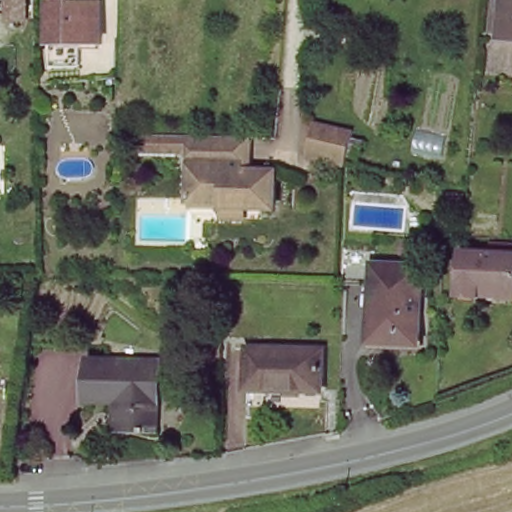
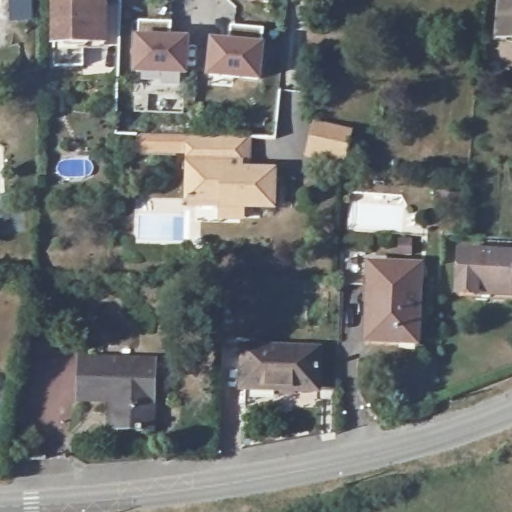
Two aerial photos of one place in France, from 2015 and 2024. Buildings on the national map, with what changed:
unchanged [(83,39),(84,62),(55,62),(54,38),(53,0),(103,0),(104,39),(83,39)]
unchanged [(503,0),(512,0),(512,38),(500,36),(503,0)]
new [(136,71),(138,20),(171,22),(169,39),(186,39),(185,71),(136,71)]
new [(213,46),(214,38),(231,40),(232,26),(264,29),(258,78),(210,75),(213,46)]
unchanged [(306,160),(314,124),(356,134),(347,169),(306,160)]
unchanged [(273,214),(243,213),(242,224),(220,223),(221,208),(186,207),(188,159),(138,157),(138,139),(189,140),(243,141),(250,142),(249,173),(274,174),(273,214)]
unchanged [(462,204),(455,203),(440,203),(440,192),(457,193),(462,193),(462,204)]
unchanged [(472,300),(471,296),(454,295),(455,252),(512,255),(512,302),(472,300)]
unchanged [(403,348),(375,347),(367,346),(369,306),(368,288),(340,287),(342,256),(373,257),(372,268),(420,270),(417,340),(416,348),(403,348)]
unchanged [(317,388),(244,387),(244,349),(318,350),(317,388)]
unchanged [(84,395),(86,353),(156,356),(154,424),(114,423),(116,397),(84,395)]

